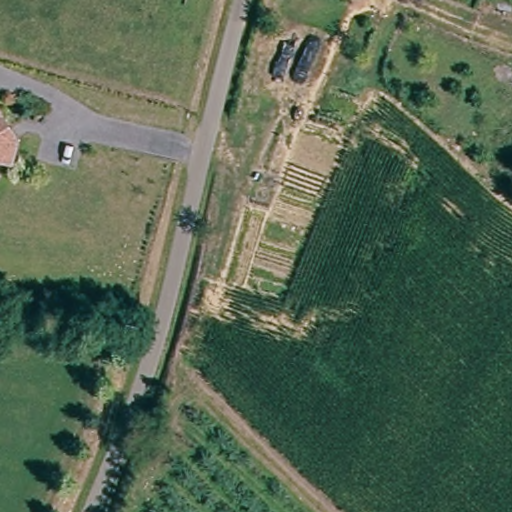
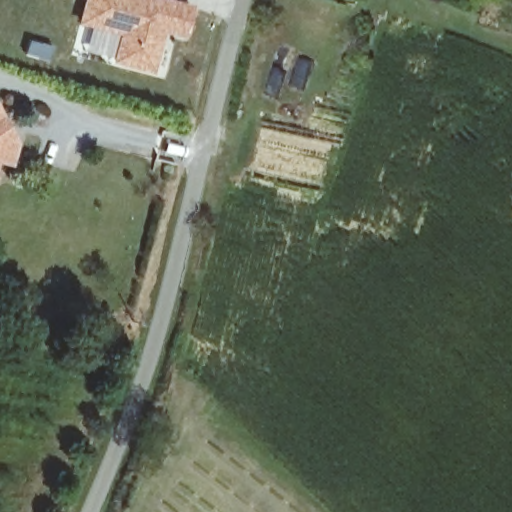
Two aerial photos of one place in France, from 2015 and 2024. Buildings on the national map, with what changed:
new [(182,0),(192,3),(184,38),(164,33),(152,75),(110,63),(116,35),(84,28),(80,44),(75,42),(84,0),(182,0)]
unchanged [(18,167),(15,166),(7,164),(2,159),(0,156),(0,116),(1,116),(4,117),(14,129),(14,133),(19,142),(22,149),(18,167)]

